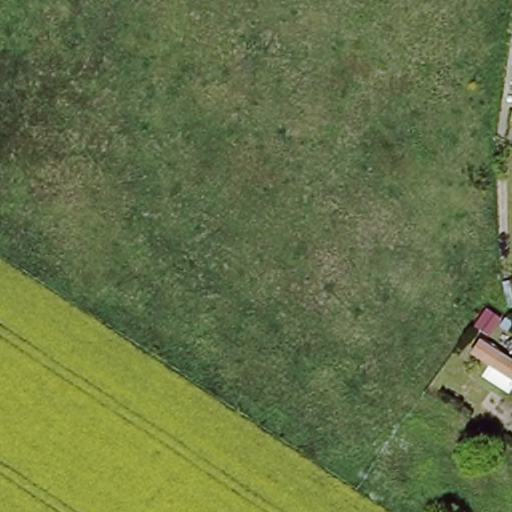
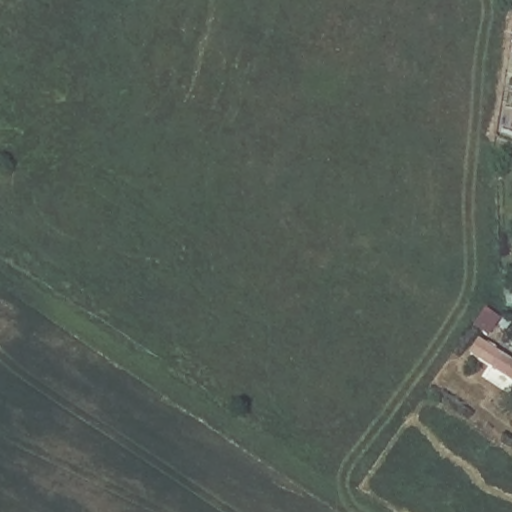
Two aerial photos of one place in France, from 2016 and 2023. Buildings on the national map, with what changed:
unchanged [(501,357),(492,370),(470,353),(479,341),(501,357)]

